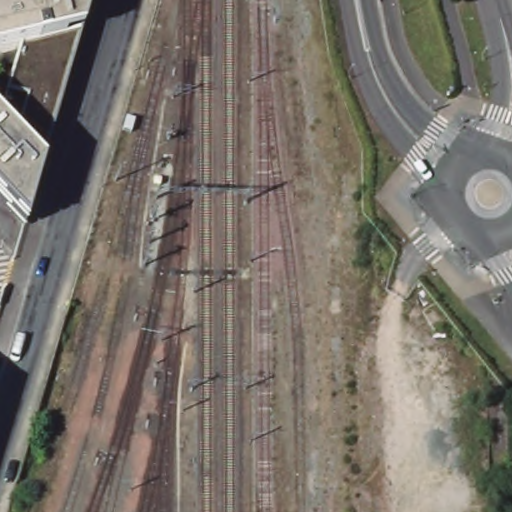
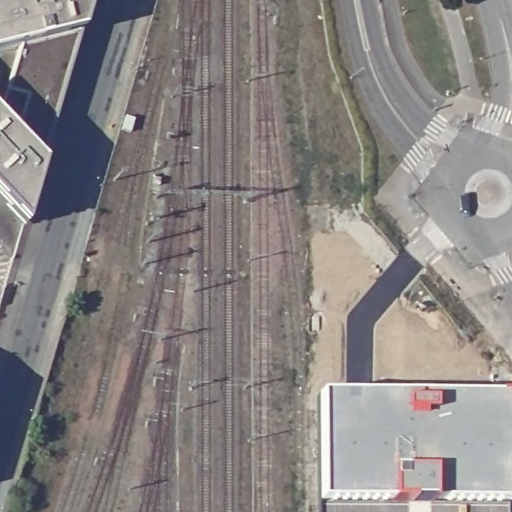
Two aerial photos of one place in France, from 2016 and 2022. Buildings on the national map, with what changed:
unchanged [(0,72),(0,0),(92,0),(76,51),(0,72)]
unchanged [(28,220),(0,193),(0,133),(40,176),(28,220)]
demolished [(79,307),(34,484),(18,481),(66,302),(79,307)]
new [(410,387),(431,388),(431,396),(510,396),(510,503),(319,503),(318,396),(410,396),(410,387)]

